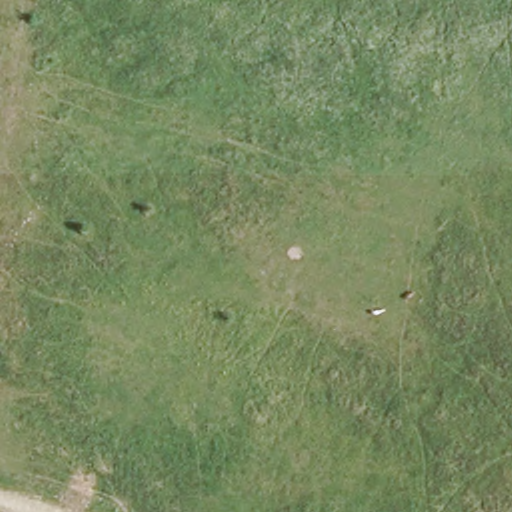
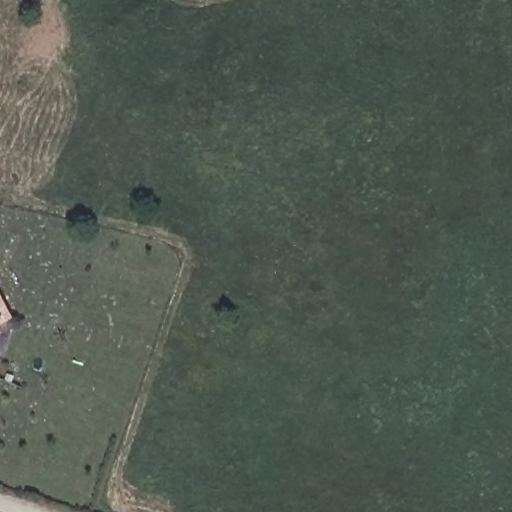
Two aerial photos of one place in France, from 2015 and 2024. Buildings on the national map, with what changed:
new [(6,324),(0,344),(0,294),(14,318),(6,324)]

